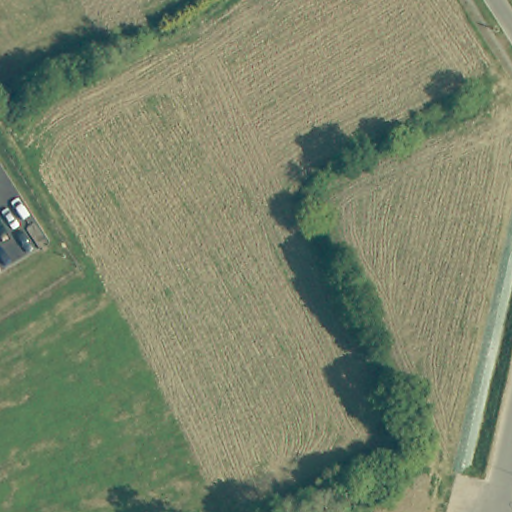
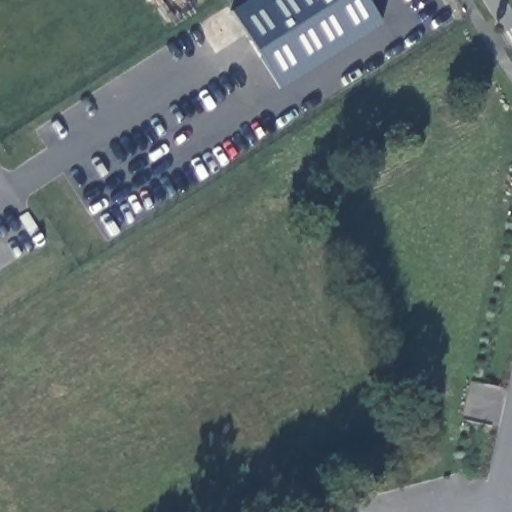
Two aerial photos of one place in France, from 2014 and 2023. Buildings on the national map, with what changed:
new [(233,10),(249,0),(367,0),(381,23),(282,87),(233,10)]

